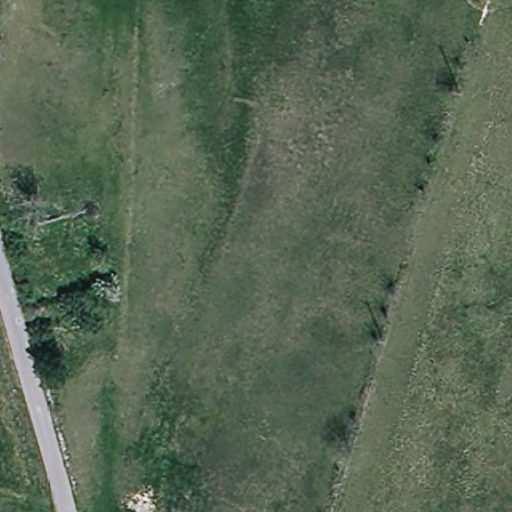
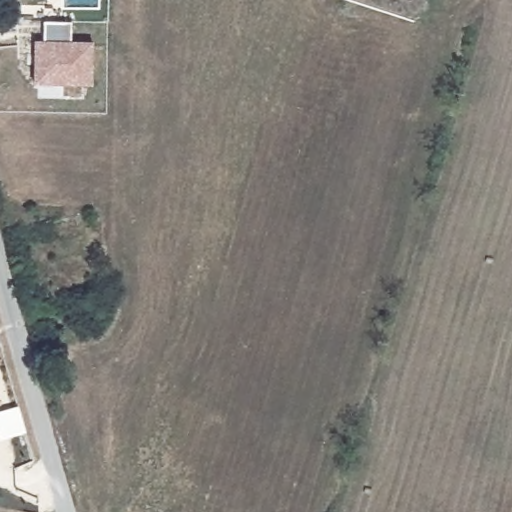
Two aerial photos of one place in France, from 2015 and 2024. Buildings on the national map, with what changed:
new [(34,85),(34,40),(44,40),(43,21),(71,21),(70,40),(93,41),(93,83),(34,85)]

